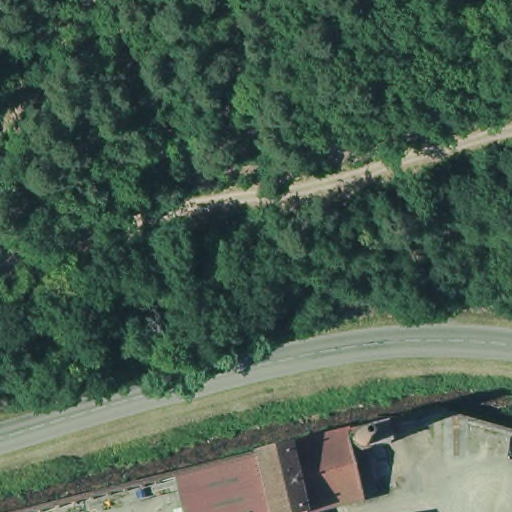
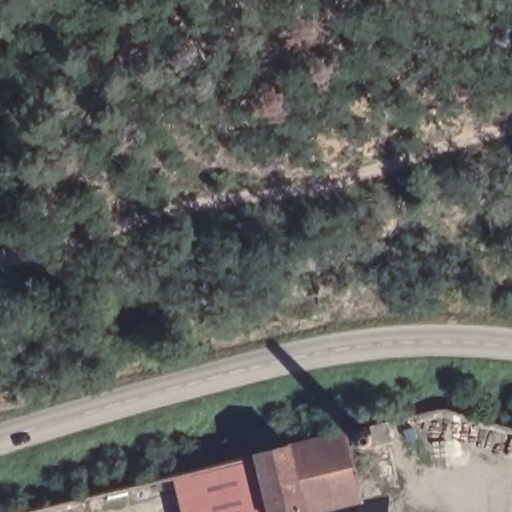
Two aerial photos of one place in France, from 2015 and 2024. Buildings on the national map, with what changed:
unchanged [(308,509),(309,512),(182,512),(174,472),(257,449),(389,421),(408,489),(308,509)]

